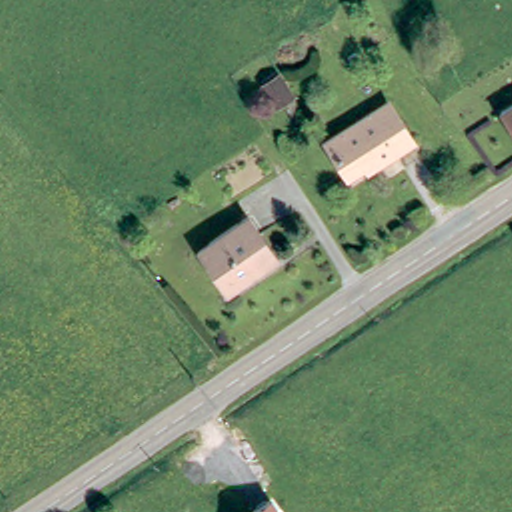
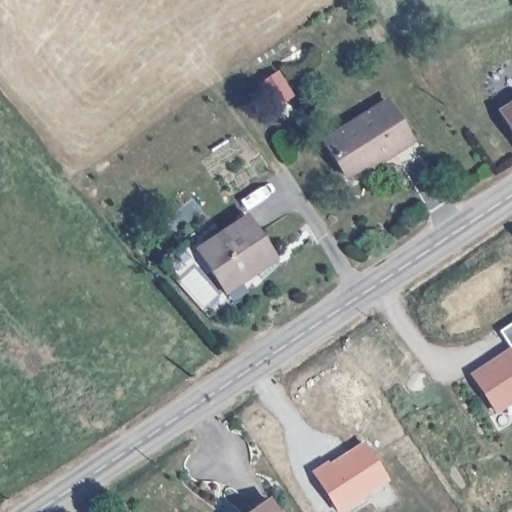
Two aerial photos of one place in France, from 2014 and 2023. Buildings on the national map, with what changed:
unchanged [(276,95),(265,78),(283,66),(294,83),(276,95)]
unchanged [(343,174),(321,141),(383,100),(407,138),(373,159),(371,157),(343,174)]
unchanged [(512,101),(512,151),(490,114),(512,101)]
unchanged [(245,210),(276,259),(255,274),(248,265),(217,286),(190,246),(245,210)]
new [(512,346),(501,330),(512,323),(512,346)]
new [(471,374),(512,348),(512,404),(496,414),(471,374)]
new [(326,461),(329,465),(362,442),(388,479),(338,511),(311,473),(326,461)]
unchanged [(282,512),(249,512),(272,496),(282,512)]

